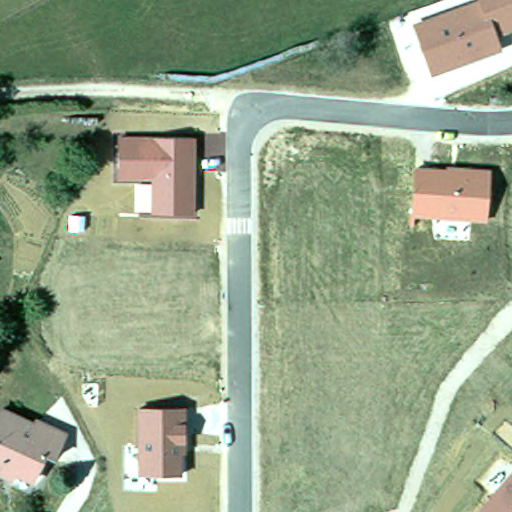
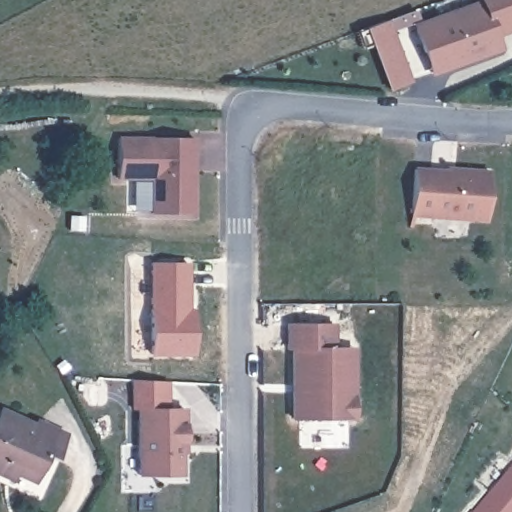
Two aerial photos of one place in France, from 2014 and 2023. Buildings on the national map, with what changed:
unchanged [(512,0),(512,31),(497,36),(502,50),(431,75),(412,23),(475,0),(512,0)]
new [(412,82),(389,92),(366,27),(389,18),(412,82)]
unchanged [(197,213),(152,213),(150,181),(118,180),(118,136),(197,137),(197,213)]
unchanged [(447,167),(447,164),(489,168),(487,219),(412,217),(414,164),(447,167)]
new [(195,320),(195,353),(152,353),(152,262),(187,262),(187,320),(195,320)]
new [(291,419),(292,349),(285,349),(285,323),(335,321),(336,346),(355,346),(352,419),(291,419)]
unchanged [(36,419),(37,415),(63,426),(51,453),(44,450),(33,475),(4,462),(1,469),(0,469),(0,404),(36,419)]
unchanged [(188,410),(188,455),(186,456),(185,475),(140,477),(139,409),(188,410)]
unchanged [(512,475),(512,512),(480,512),(512,475)]

